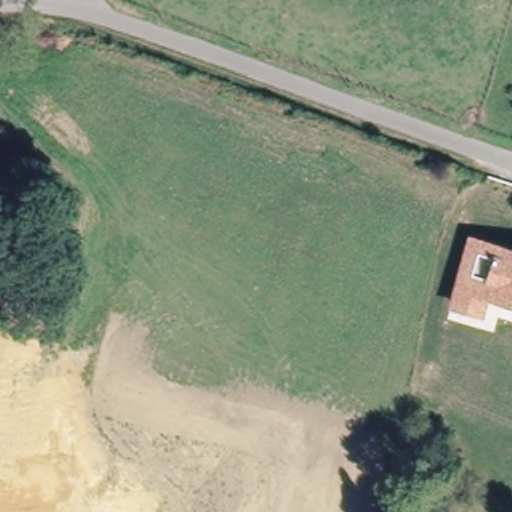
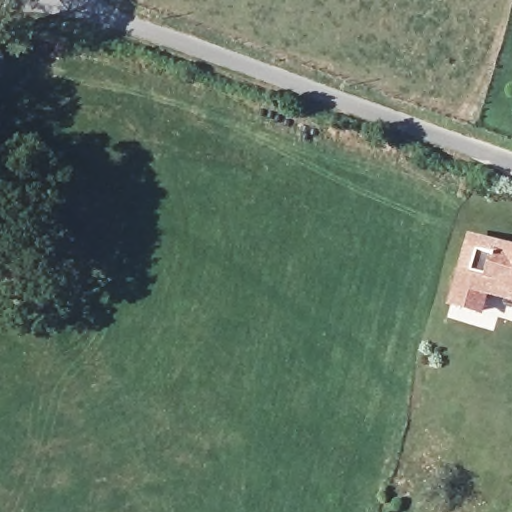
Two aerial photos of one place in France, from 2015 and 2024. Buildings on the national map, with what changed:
unchanged [(487,295),(480,316),(454,308),(459,291),(457,290),(472,244),(512,256),(512,303),(487,295)]

